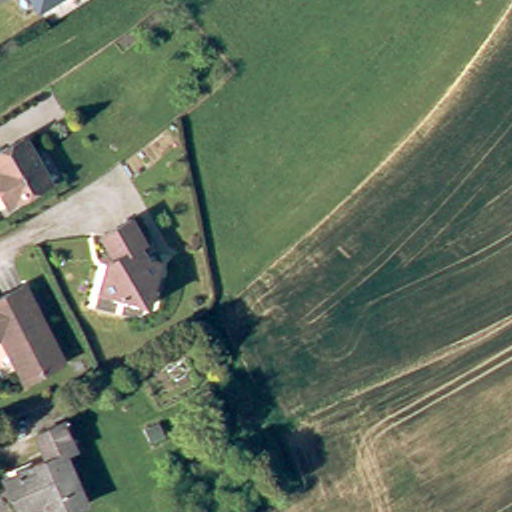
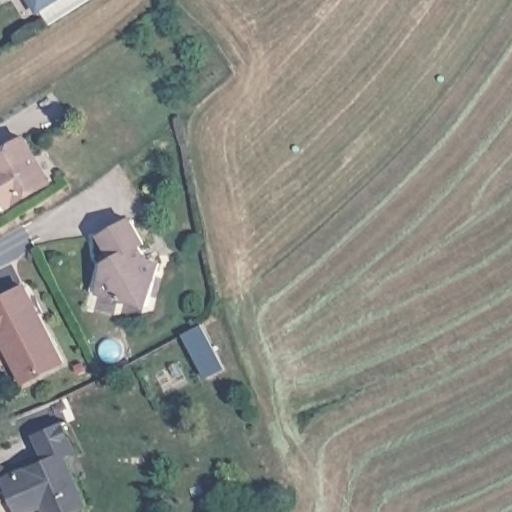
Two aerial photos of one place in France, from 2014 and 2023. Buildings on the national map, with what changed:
unchanged [(71,0),(40,19),(27,0),(71,0)]
unchanged [(20,134),(45,178),(5,201),(0,193),(0,145),(20,134)]
unchanged [(98,248),(106,244),(97,226),(126,209),(140,234),(135,237),(142,249),(155,253),(145,296),(95,283),(101,254),(98,248)]
unchanged [(0,338),(0,292),(20,282),(59,358),(20,378),(0,338)]
unchanged [(10,509),(0,485),(0,473),(38,456),(27,431),(53,419),(65,446),(55,451),(76,500),(49,512),(12,512),(10,509)]
unchanged [(151,442),(146,432),(160,426),(163,437),(151,442)]

